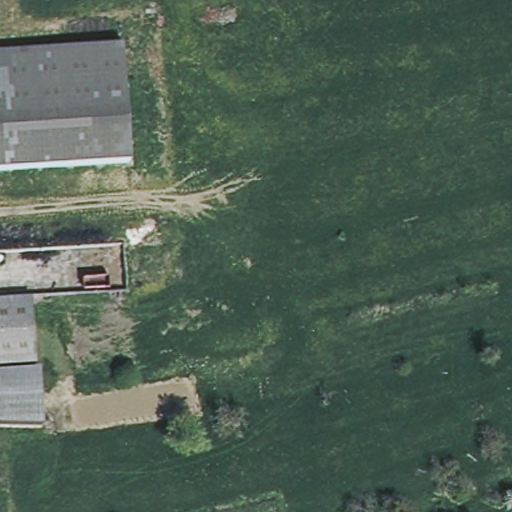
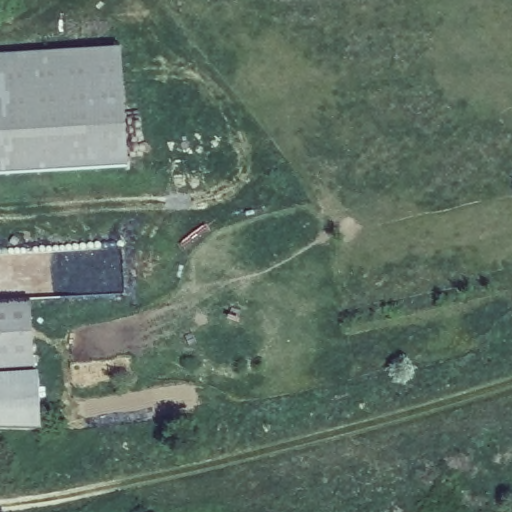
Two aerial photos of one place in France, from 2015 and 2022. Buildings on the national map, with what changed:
unchanged [(124,45),(131,165),(0,174),(0,51),(124,45)]
unchanged [(30,300),(33,366),(0,368),(0,301),(30,300)]
unchanged [(41,373),(41,430),(0,429),(0,375),(41,373)]

